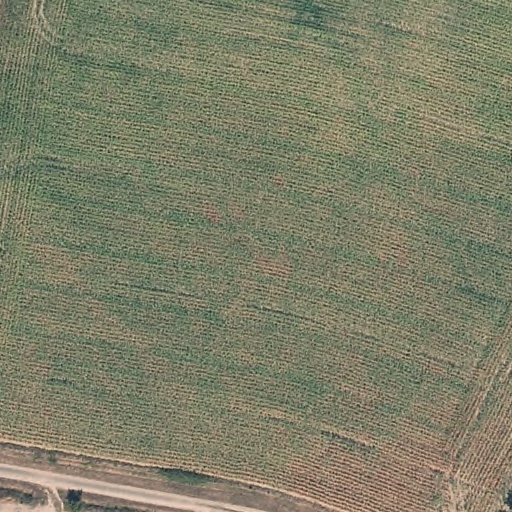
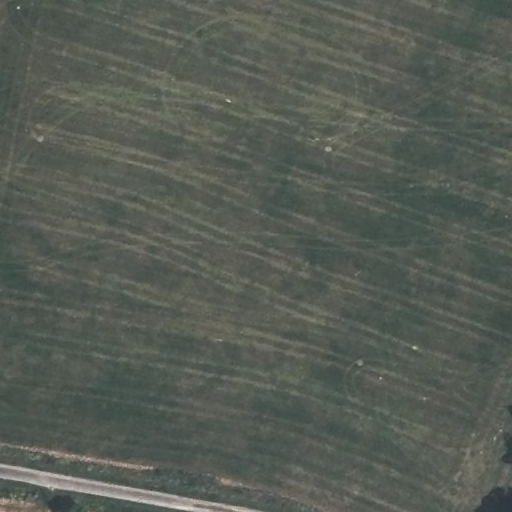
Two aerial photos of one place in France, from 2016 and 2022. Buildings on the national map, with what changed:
[]

